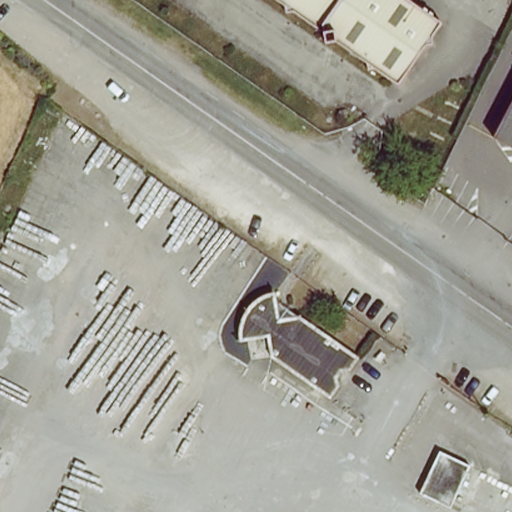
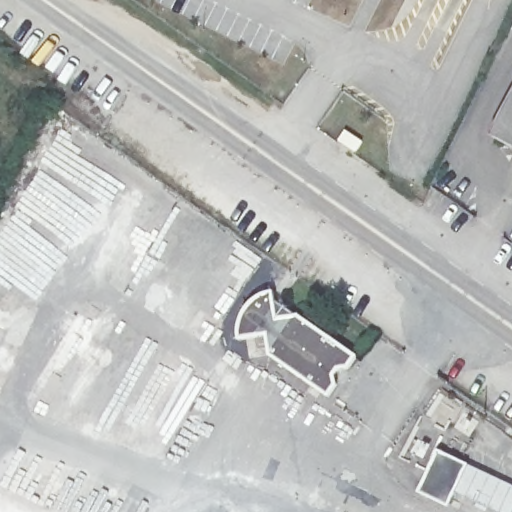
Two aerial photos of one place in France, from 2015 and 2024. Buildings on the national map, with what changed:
demolished [(403,81),(278,0),(411,0),(444,21),(403,81)]
unchanged [(512,99),(512,144),(493,134),(512,99)]
unchanged [(272,359),(266,336),(239,339),(240,330),(243,318),(251,304),(268,292),(276,320),(297,316),(354,359),(346,367),(336,367),(332,377),(331,388),(327,397),(272,359)]
unchanged [(448,508),(416,494),(437,450),(465,464),(448,508)]

